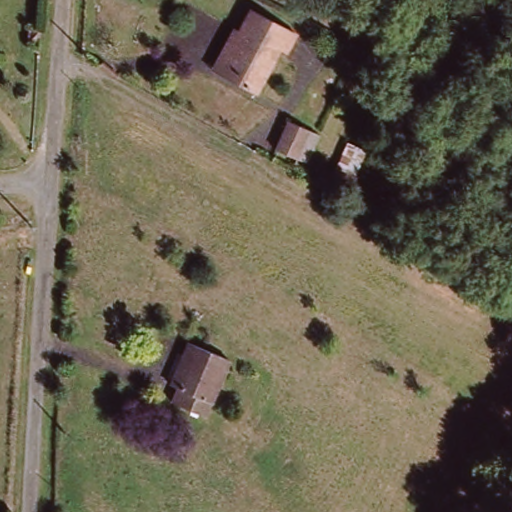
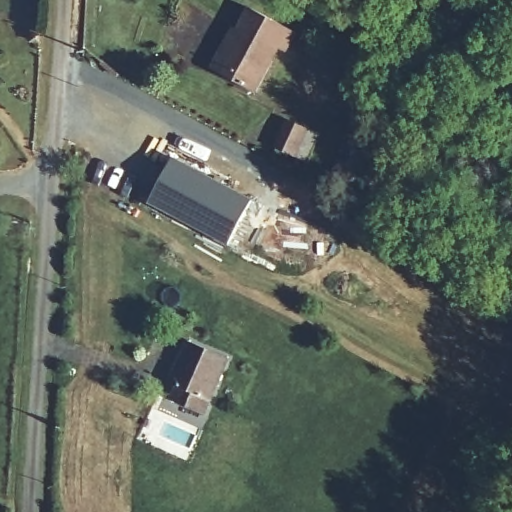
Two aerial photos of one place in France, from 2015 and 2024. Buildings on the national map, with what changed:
unchanged [(287,33),(253,95),(213,74),(247,11),(287,33)]
unchanged [(29,32),(30,21),(39,22),(38,34),(29,32)]
unchanged [(270,151),(282,129),(300,139),(288,161),(270,151)]
new [(228,245),(146,203),(170,155),(253,200),(228,245)]
unchanged [(187,342),(226,358),(201,418),(171,406),(180,387),(170,383),(187,342)]

